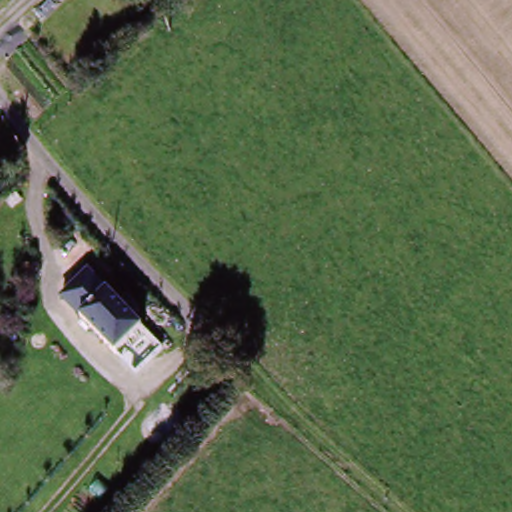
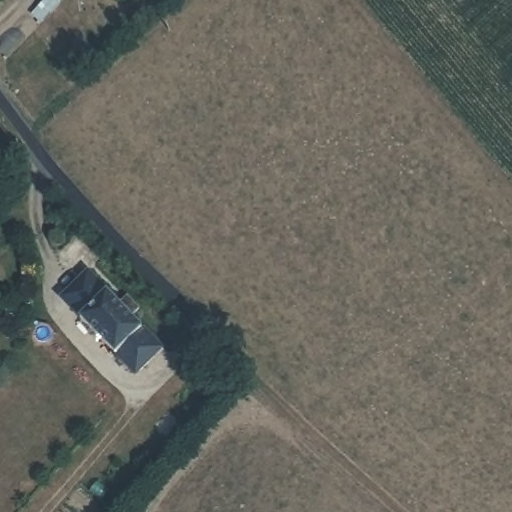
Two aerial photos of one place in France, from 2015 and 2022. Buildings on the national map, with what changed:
unchanged [(120,358),(78,329),(66,320),(80,301),(92,309),(95,305),(83,298),(92,285),(104,293),(101,296),(114,305),(121,295),(135,304),(128,314),(143,325),(120,358)]

